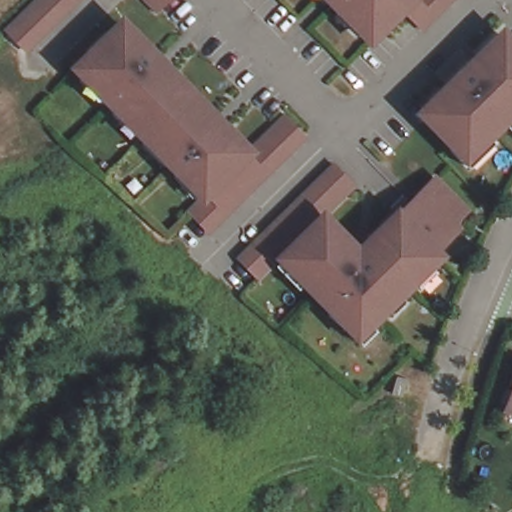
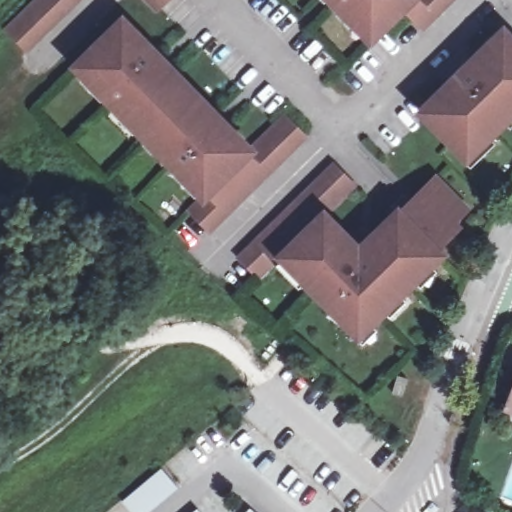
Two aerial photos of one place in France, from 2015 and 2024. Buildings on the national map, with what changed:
unchanged [(26,50),(4,28),(33,0),(78,0),(26,50)]
unchanged [(158,12),(146,0),(170,0),(158,12)]
unchanged [(446,10),(423,34),(421,32),(413,24),(403,14),(387,30),(384,27),(371,41),(348,17),(353,13),(340,0),(456,0),(446,10)]
unchanged [(93,58),(90,55),(106,40),(109,42),(123,29),(146,52),(141,57),(163,79),(167,74),(213,121),(208,125),(219,136),(223,131),(247,155),(204,197),(181,174),(186,169),(176,158),(170,163),(124,116),(129,111),(107,90),(103,94),(80,71),(93,58)]
unchanged [(466,90),(476,79),(474,77),(509,45),(512,48),(512,124),(507,130),(492,144),(472,164),(463,155),(430,121),(464,88),(466,90)]
unchanged [(204,197),(247,155),(274,129),(284,119),(306,140),(208,236),(186,215),(204,197)]
unchanged [(329,169),(351,191),(319,223),(354,258),(394,220),(386,212),(399,200),(407,207),(431,184),(460,214),(447,226),(453,232),(428,255),(432,259),(424,267),(407,283),(393,297),(376,313),(364,325),(353,336),(330,312),(303,285),(280,261),(271,270),(255,285),(233,263),(329,169)]
unchanged [(512,395),(512,411),(507,409),(512,395)]
new [(146,512),(132,512),(124,502),(163,470),(177,486),(146,512)]
new [(248,512),(251,509),(254,512),(248,512)]
new [(195,512),(197,510),(199,512),(195,512)]

